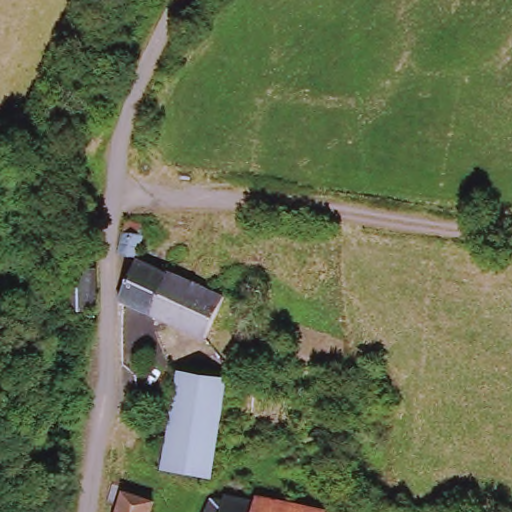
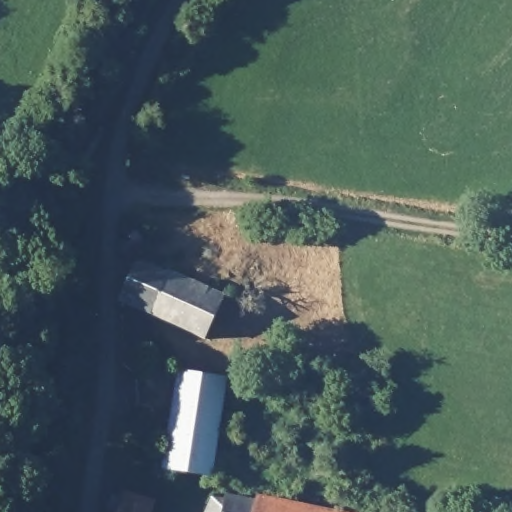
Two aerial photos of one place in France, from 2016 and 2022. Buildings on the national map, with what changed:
unchanged [(178,276),(235,302),(216,345),(200,337),(130,305),(147,265),(177,278),(178,276)]
unchanged [(232,384),(217,483),(169,474),(186,376),(232,384)]
unchanged [(152,512),(118,512),(124,493),(155,503),(152,512)]
unchanged [(230,505),(231,501),(263,507),(265,503),(308,512),(214,512),(218,503),(230,505)]

